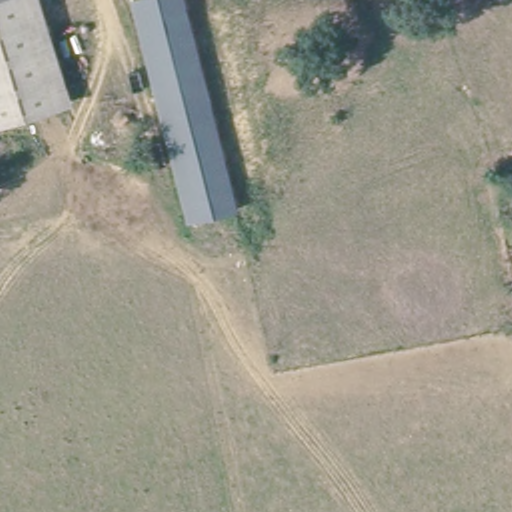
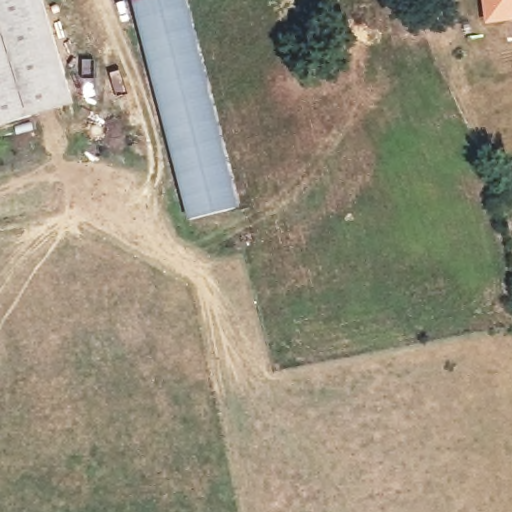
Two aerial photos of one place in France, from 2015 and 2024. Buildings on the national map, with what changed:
unchanged [(0,128),(0,0),(24,0),(62,106),(0,128)]
unchanged [(130,2),(135,0),(179,0),(208,80),(162,98),(130,2)]
new [(484,26),(481,0),(512,0),(512,22),(484,26)]
unchanged [(169,118),(162,98),(208,80),(214,100),(169,118)]
unchanged [(249,200),(202,217),(169,118),(214,100),(249,200)]

